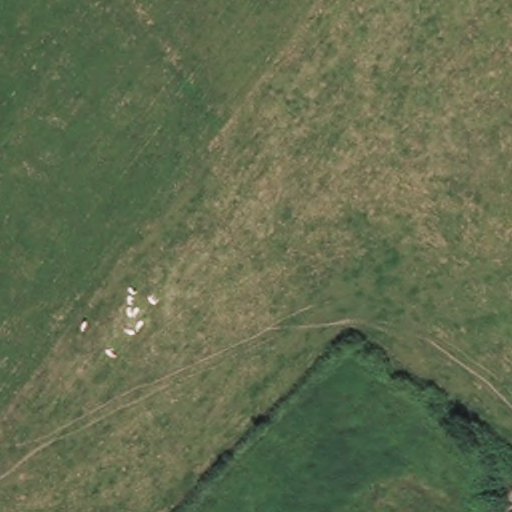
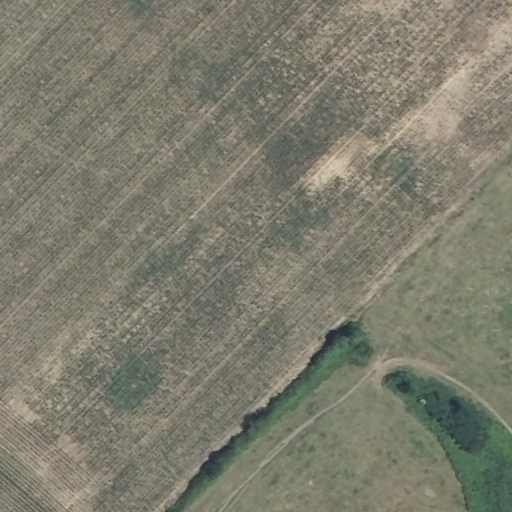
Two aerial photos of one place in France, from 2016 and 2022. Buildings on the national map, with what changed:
[]

